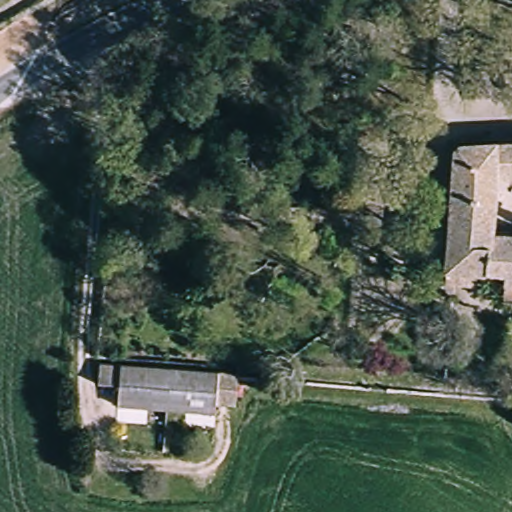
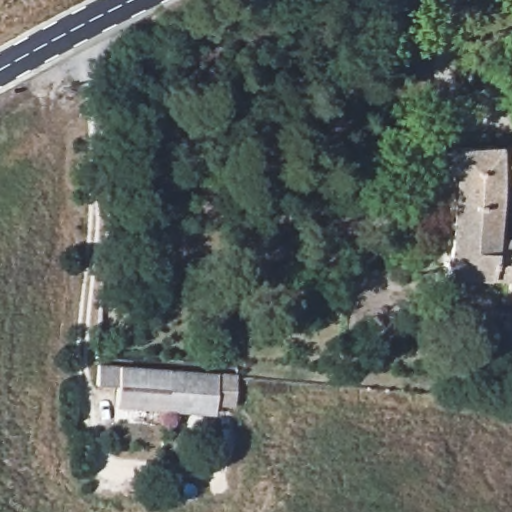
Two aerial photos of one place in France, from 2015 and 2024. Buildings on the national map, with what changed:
unchanged [(492,178),(495,145),(512,144),(512,178),(492,178)]
unchanged [(468,281),(467,288),(438,288),(448,148),(495,145),(492,178),(490,179),(488,232),(505,235),(500,281),(495,282),(468,281)]
unchanged [(497,308),(495,282),(500,281),(505,235),(512,236),(512,308),(497,308)]
unchanged [(229,408),(212,408),(210,417),(115,407),(114,389),(94,387),(99,364),(233,374),(229,408)]

